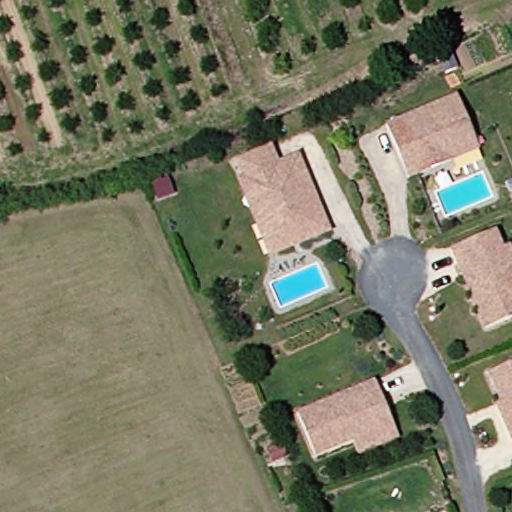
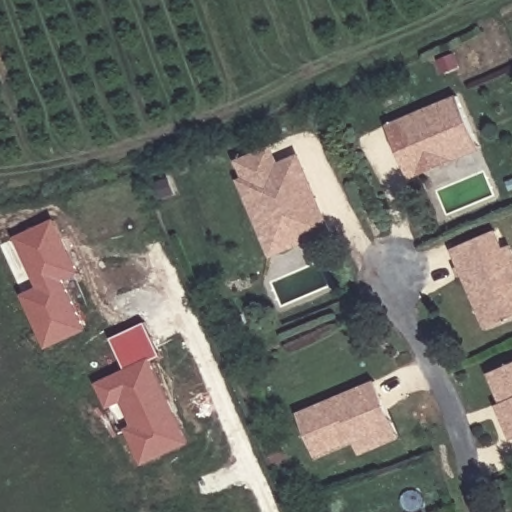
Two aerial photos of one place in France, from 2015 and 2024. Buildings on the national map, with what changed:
unchanged [(404,156),(390,125),(459,92),(476,129),(483,142),(456,155),(423,171),(414,175),(404,156)]
unchanged [(277,164),(291,157),(297,154),(316,195),(332,227),(294,245),(280,215),(265,222),(245,179),(237,162),(269,147),(277,164)]
unchanged [(274,255),(239,182),(245,179),(265,222),(280,215),(294,245),(274,255)]
new [(80,272),(65,278),(88,330),(47,348),(22,293),(39,286),(16,236),(56,217),(80,272)]
unchanged [(456,249),(497,229),(506,247),(512,244),(512,318),(493,327),(456,249)]
new [(161,355),(152,359),(190,442),(142,465),(125,428),(133,425),(123,401),(108,408),(96,381),(126,367),(112,337),(146,322),(161,355)]
unchanged [(506,411),(503,405),(501,406),(487,376),(512,364),(512,439),(500,414),(506,411)]
unchanged [(361,447),(355,434),(318,452),(298,412),(374,375),(383,392),(400,428),(361,447)]

